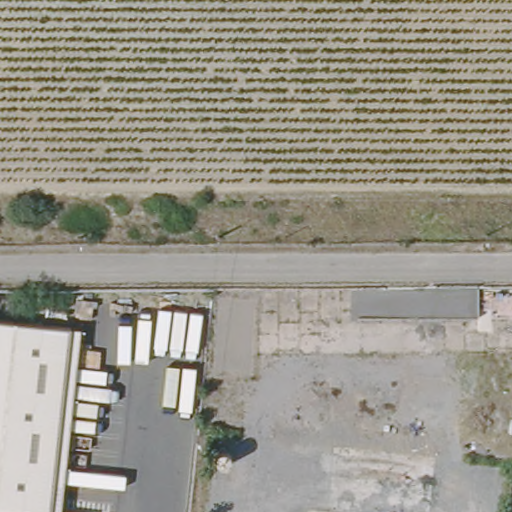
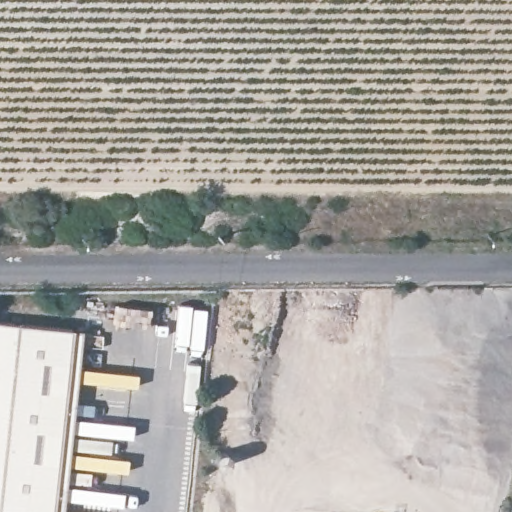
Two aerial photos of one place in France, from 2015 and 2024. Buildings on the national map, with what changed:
unchanged [(0,322),(78,330),(57,512),(0,512),(0,322)]

